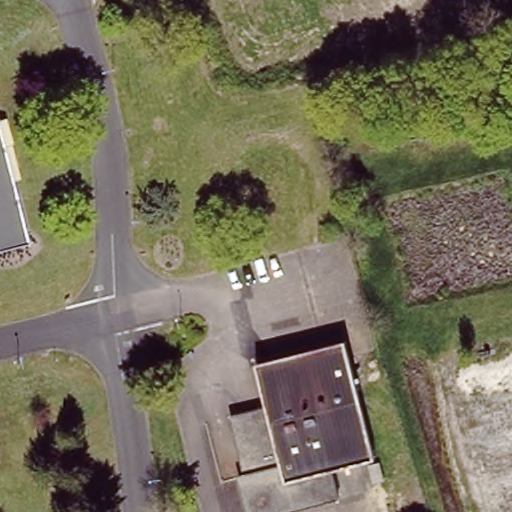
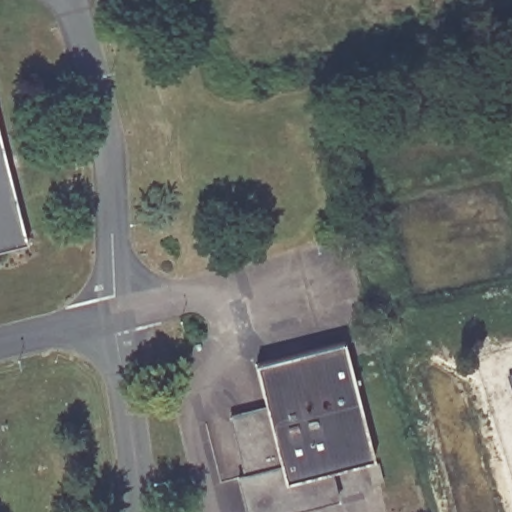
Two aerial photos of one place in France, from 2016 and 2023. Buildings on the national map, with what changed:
unchanged [(25,237),(0,244),(0,135),(25,237)]
unchanged [(337,500),(290,512),(247,512),(238,478),(246,476),(231,417),(266,408),(256,365),(343,341),(373,460),(330,470),(337,500)]

